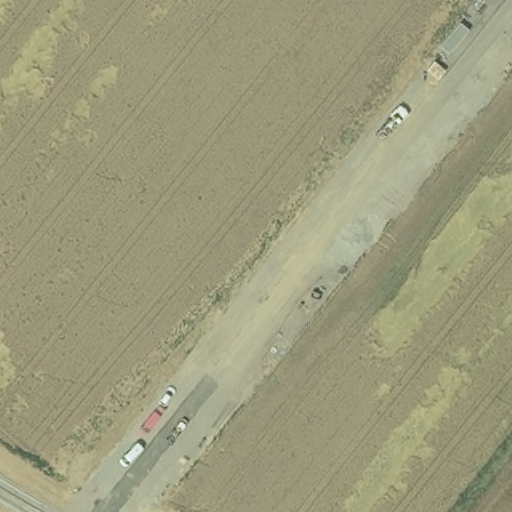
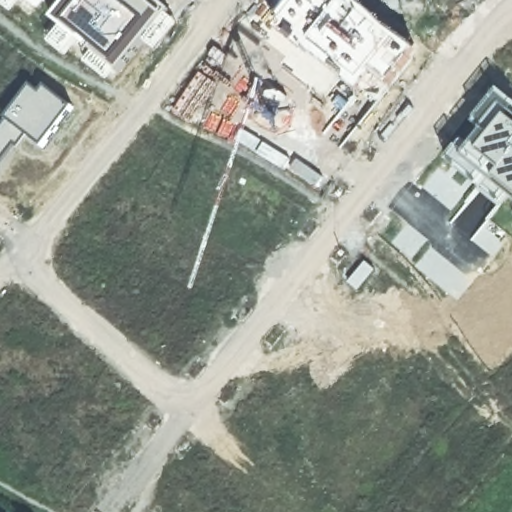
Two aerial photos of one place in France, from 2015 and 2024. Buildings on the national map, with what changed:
new [(80,39),(52,17),(67,0),(112,0),(80,39)]
new [(172,14),(131,68),(101,48),(135,0),(156,0),(172,14)]
new [(417,52),(377,105),(280,30),(285,22),(282,20),(296,0),(350,0),(417,52)]
new [(48,85),(77,108),(42,151),(30,139),(0,170),(0,127),(32,89),(42,94),(48,85)]
new [(512,95),(512,208),(452,160),(507,91),(512,95)]
new [(367,263),(376,272),(359,291),(350,283),(367,263)]

